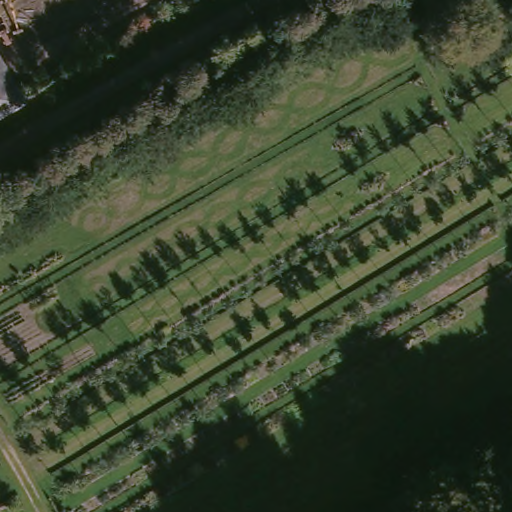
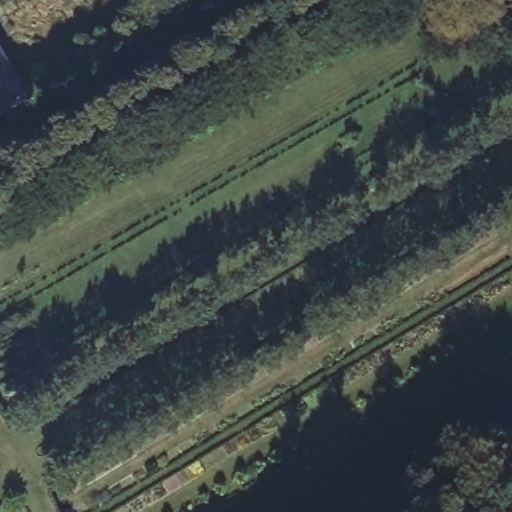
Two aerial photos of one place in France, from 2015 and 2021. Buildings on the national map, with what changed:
unchanged [(0,103),(0,44),(25,88),(0,103)]

